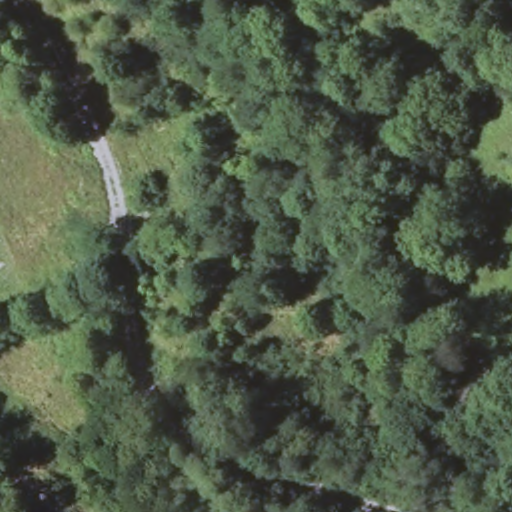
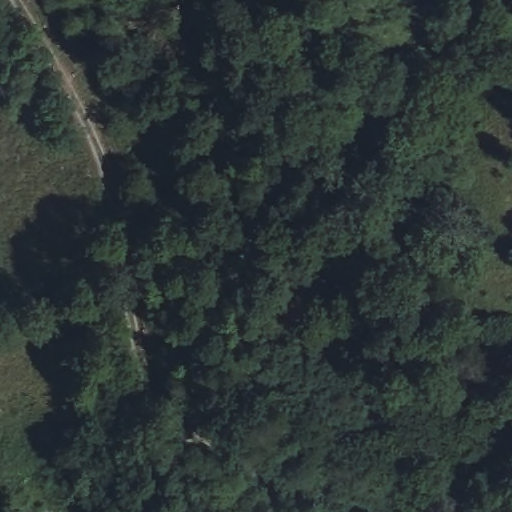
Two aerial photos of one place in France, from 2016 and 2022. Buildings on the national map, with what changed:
[]

